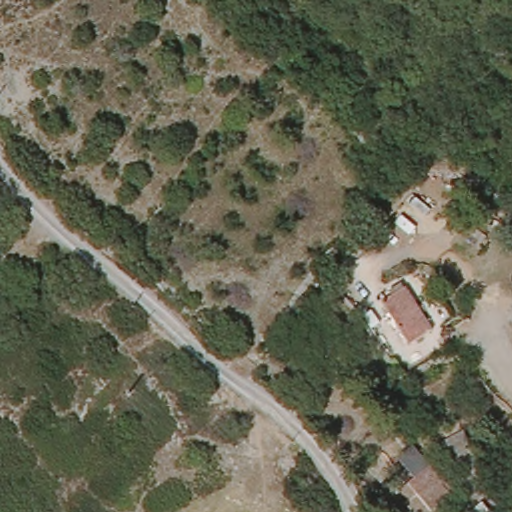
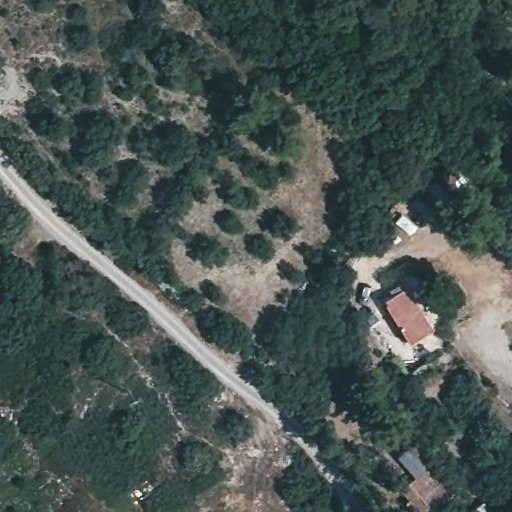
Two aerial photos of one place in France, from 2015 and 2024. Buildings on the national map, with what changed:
unchanged [(447,220),(438,231),(422,230),(400,209),(402,207),(414,193),(447,220)]
unchanged [(425,330),(402,343),(377,301),(401,288),(425,330)]
unchanged [(407,509),(412,504),(401,492),(431,467),(447,484),(444,487),(455,499),(439,512),(410,512),(407,509)]

